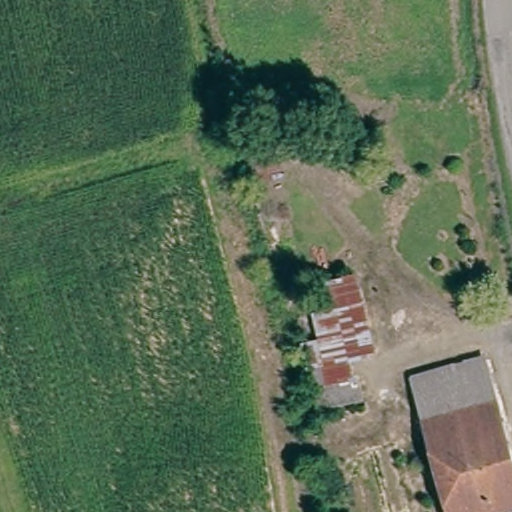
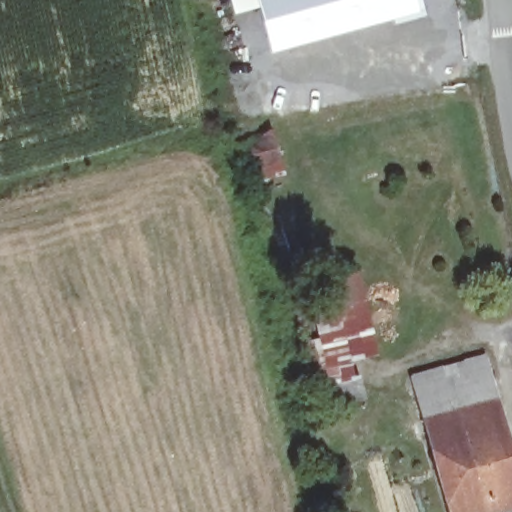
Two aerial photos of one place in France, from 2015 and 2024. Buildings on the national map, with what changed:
new [(371,25),(268,52),(257,9),(233,15),(229,0),(421,0),(425,14),(371,25)]
unchanged [(256,180),(246,129),(274,123),(288,171),(256,180)]
unchanged [(362,268),(379,353),(355,361),(366,412),(308,417),(282,291),(293,287),(305,278),(362,268)]
unchanged [(488,352),(501,405),(428,423),(413,373),(488,352)]
unchanged [(428,423),(501,405),(512,444),(512,508),(497,512),(452,512),(428,423)]

